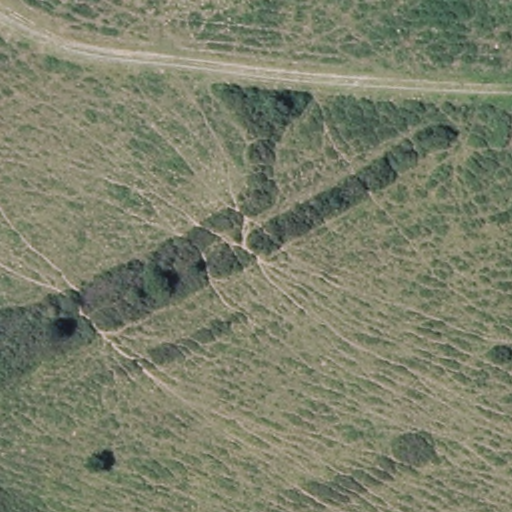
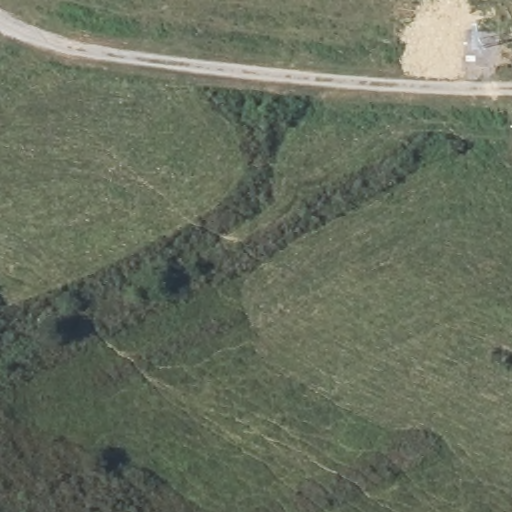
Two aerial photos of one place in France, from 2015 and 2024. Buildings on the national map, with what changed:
[]

